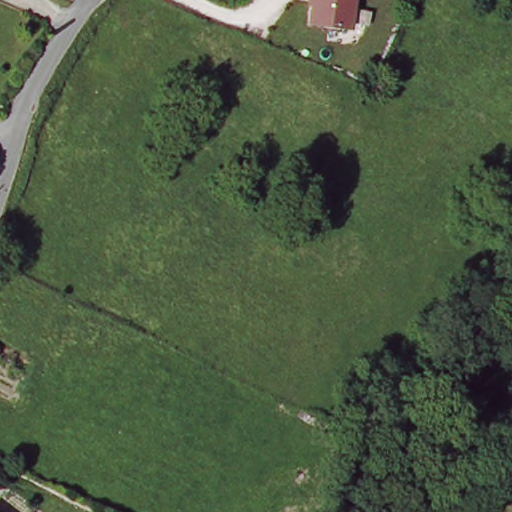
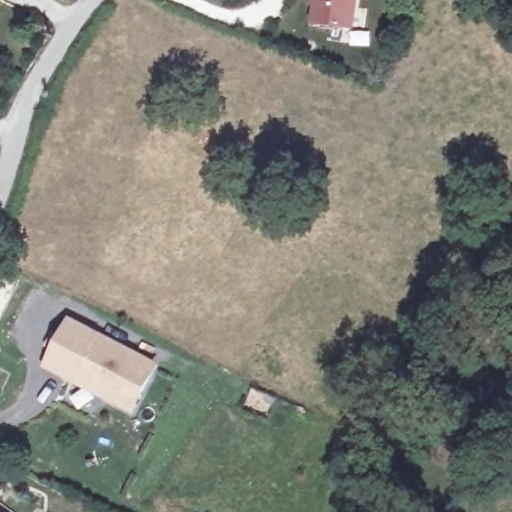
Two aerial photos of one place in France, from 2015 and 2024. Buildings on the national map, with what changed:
unchanged [(349,27),(310,21),(314,3),(309,2),(309,0),(352,0),(349,27)]
new [(43,367),(69,317),(160,365),(134,416),(43,367)]

